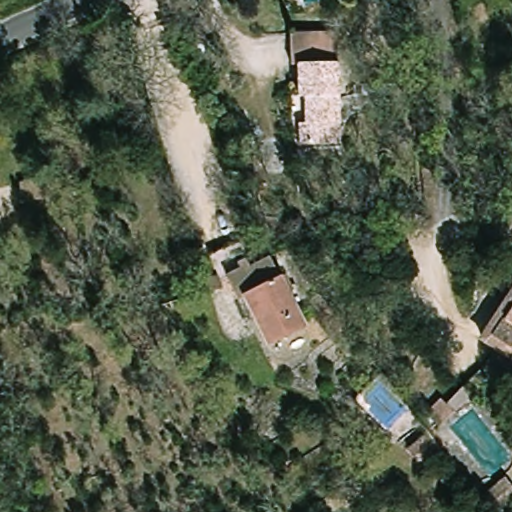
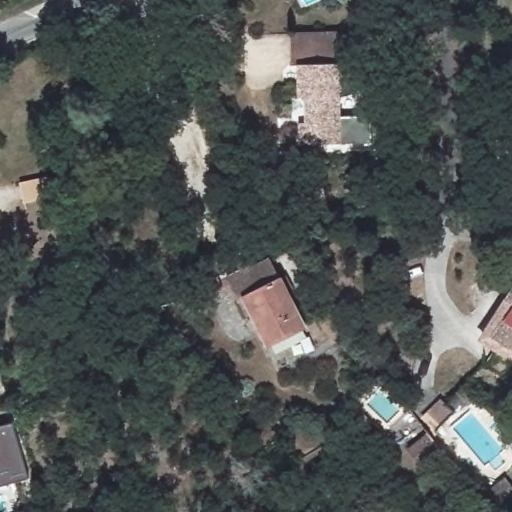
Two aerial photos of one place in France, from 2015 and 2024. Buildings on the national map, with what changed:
unchanged [(306,117),(311,117),(311,93),(306,92),(306,56),(298,56),(299,25),(346,28),(341,136),(304,135),(306,117)]
unchanged [(60,175),(62,198),(24,203),(22,179),(60,175)]
unchanged [(218,271),(242,259),(252,277),(229,289),(218,271)]
unchanged [(484,341),(475,337),(498,293),(511,270),(512,270),(512,356),(506,353),(493,377),(479,364),(490,344),(484,341)]
unchanged [(309,305),(301,308),(319,342),(283,362),(259,313),(251,316),(239,292),(266,281),(284,273),(293,294),(301,290),(309,305)]
unchanged [(339,337),(323,319),(322,318),(326,314),(316,302),(326,294),(339,310),(352,326),(339,337)]
new [(30,479),(12,484),(13,489),(0,493),(0,424),(12,420),(30,479)]
unchanged [(443,444),(421,463),(409,446),(429,427),(443,444)]
unchanged [(512,478),(512,497),(501,511),(485,495),(508,473),(512,478)]

